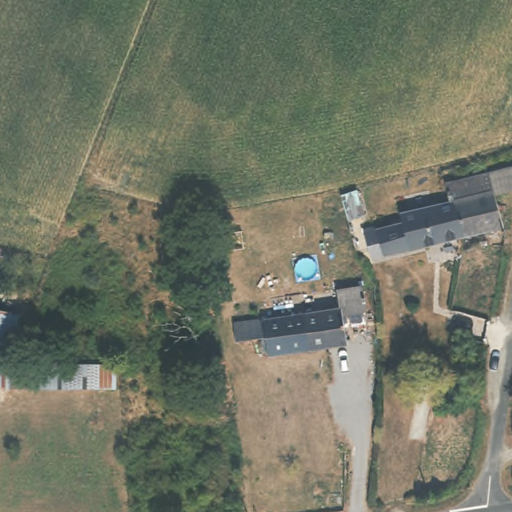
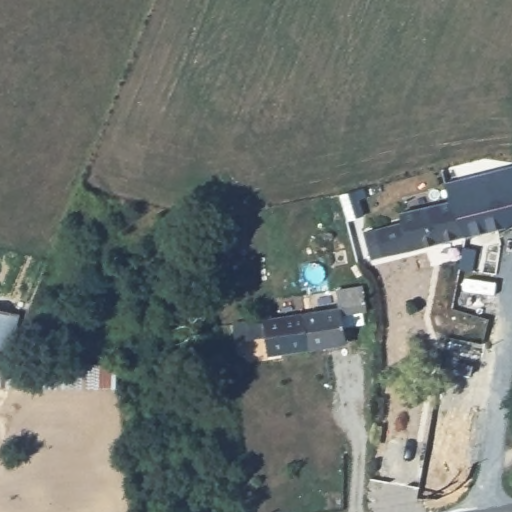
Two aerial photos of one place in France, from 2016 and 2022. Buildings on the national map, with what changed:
unchanged [(498,170),(509,226),(465,237),(454,199),(450,180),(498,170)]
unchanged [(408,222),(406,210),(454,199),(465,237),(376,259),(373,229),(408,222)]
unchanged [(363,285),(368,323),(343,317),(347,344),(272,354),(268,318),(338,309),(337,288),(363,285)]
unchanged [(0,341),(0,307),(12,310),(0,341)]
unchanged [(116,362),(111,389),(51,389),(51,364),(116,362)]

